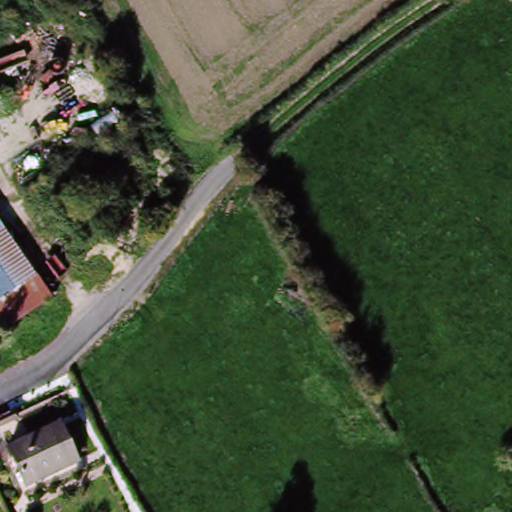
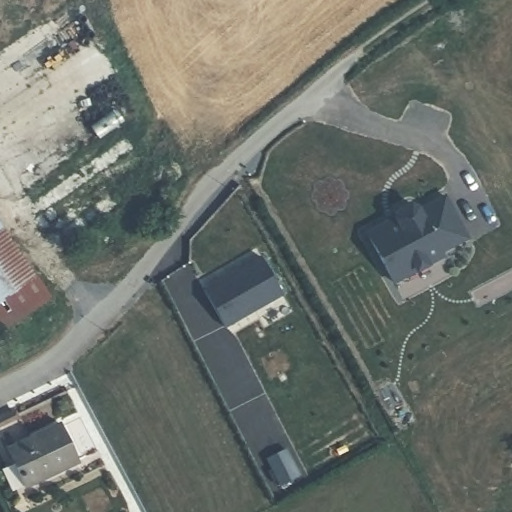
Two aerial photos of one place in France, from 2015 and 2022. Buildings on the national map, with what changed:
new [(366,232),(393,217),(395,210),(409,203),(415,205),(418,209),(444,194),(467,237),(441,251),(443,255),(393,282),(366,232)]
unchanged [(40,286),(48,297),(0,330),(0,297),(6,292),(0,283),(0,227),(40,286)]
new [(201,288),(259,256),(280,293),(222,325),(201,288)]
unchanged [(6,292),(0,297),(0,283),(6,292)]
unchanged [(71,464),(18,490),(0,453),(54,428),(71,464)]

